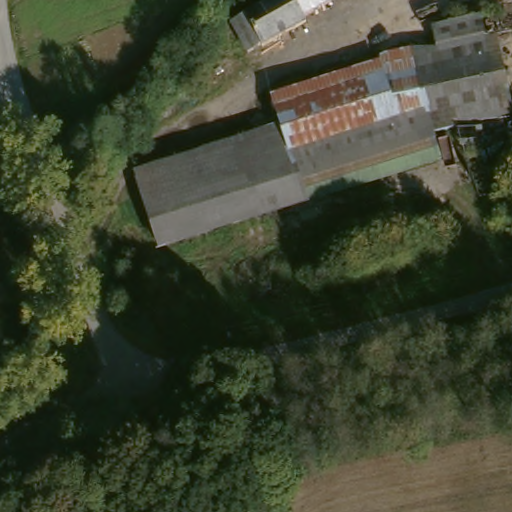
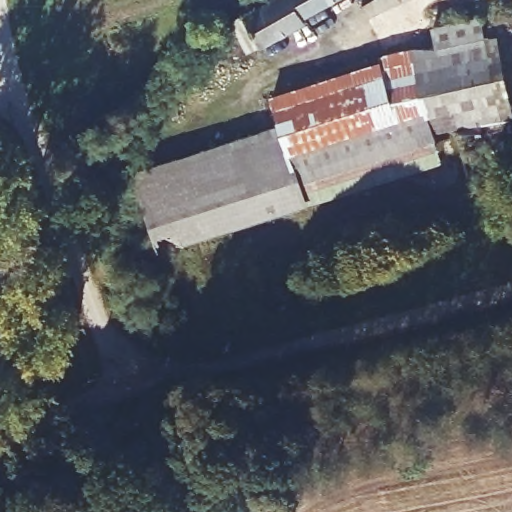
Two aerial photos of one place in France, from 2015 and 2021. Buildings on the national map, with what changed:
unchanged [(326,0),(301,13),(304,20),(258,44),(257,43),(246,49),(230,20),(267,0),(326,0)]
unchanged [(270,140),(263,110),(278,104),(276,94),(384,55),(438,41),(439,25),(498,16),(512,79),(512,128),(462,139),(459,128),(440,134),(436,135),(299,176),(287,134),(270,140)]
unchanged [(299,176),(306,203),(164,248),(144,178),(270,140),(287,134),(299,176)]
unchanged [(436,135),(444,158),(313,201),(306,203),(299,176),(436,135)]

